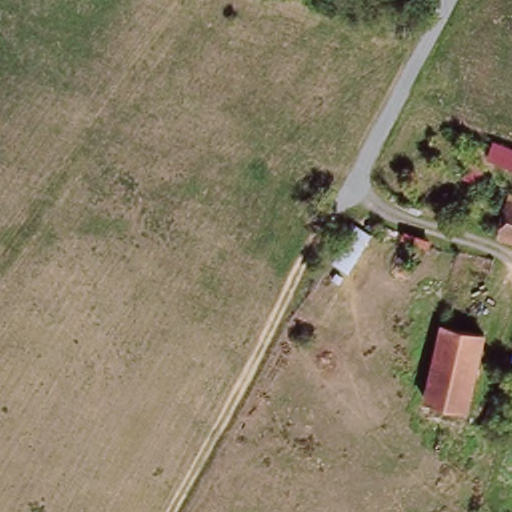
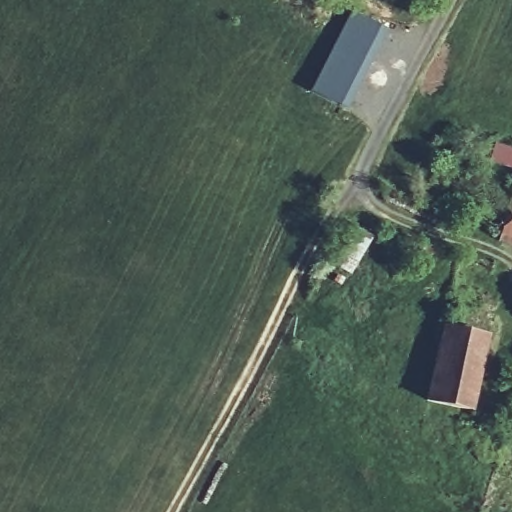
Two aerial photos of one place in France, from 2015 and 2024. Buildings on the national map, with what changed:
new [(339,108),(308,88),(350,9),(383,28),(339,108)]
new [(491,143),(512,150),(512,170),(486,160),(491,143)]
unchanged [(508,197),(512,198),(512,238),(498,234),(508,197)]
unchanged [(429,400),(444,327),(486,336),(469,409),(429,400)]

